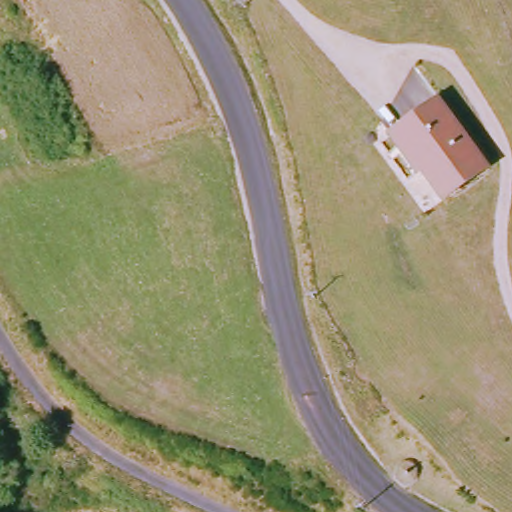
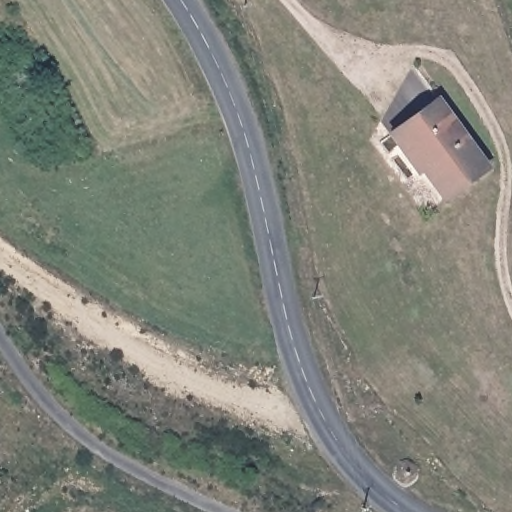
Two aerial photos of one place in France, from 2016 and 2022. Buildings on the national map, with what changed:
unchanged [(386,140),(435,103),(484,167),(441,201),(386,140)]

